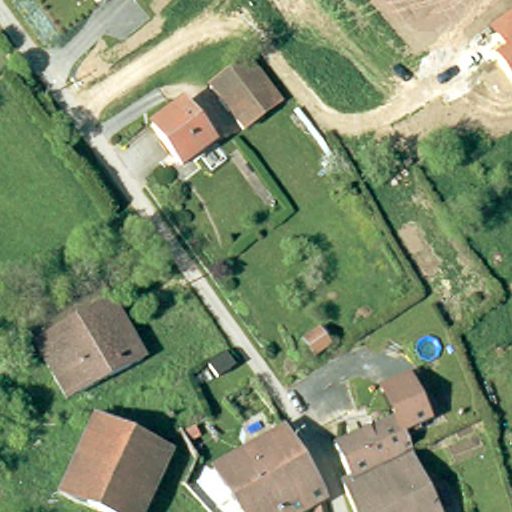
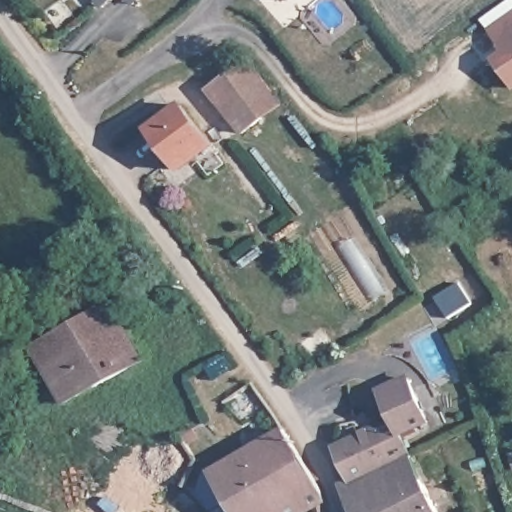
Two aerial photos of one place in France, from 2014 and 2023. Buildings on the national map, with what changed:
unchanged [(103,8),(96,0),(113,0),(103,8)]
unchanged [(129,0),(141,0),(134,6),(129,0)]
unchanged [(492,58),(505,51),(490,30),(512,14),(512,87),(492,58)]
unchanged [(266,122),(233,80),(252,67),(283,109),(266,122)]
unchanged [(246,137),(214,94),(233,80),(266,122),(246,137)]
unchanged [(181,115),(210,154),(181,176),(150,137),(181,115)]
unchanged [(142,361),(105,382),(67,404),(18,326),(57,303),(95,281),(142,361)]
new [(459,286),(469,308),(445,320),(434,297),(459,286)]
unchanged [(392,416),(382,395),(407,383),(427,426),(416,432),(402,438),(395,424),(392,416)]
unchanged [(350,484),(334,454),(395,424),(402,438),(410,455),(350,484)]
demolished [(167,461),(159,482),(147,512),(59,512),(92,431),(167,461)]
unchanged [(282,433),(323,507),(325,512),(234,512),(210,476),(282,433)]
unchanged [(446,508),(439,512),(353,512),(342,488),(350,484),(410,455),(431,501),(441,497),(446,508)]

